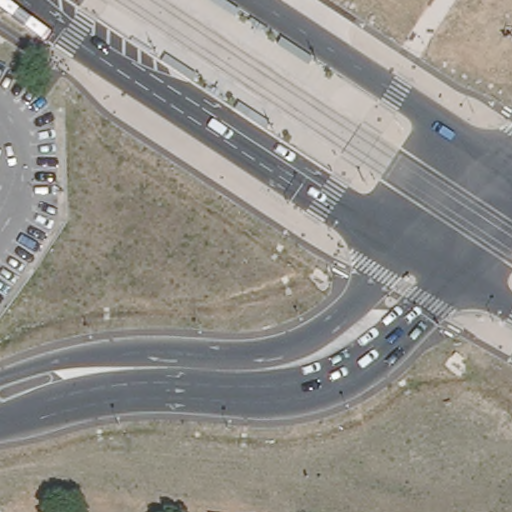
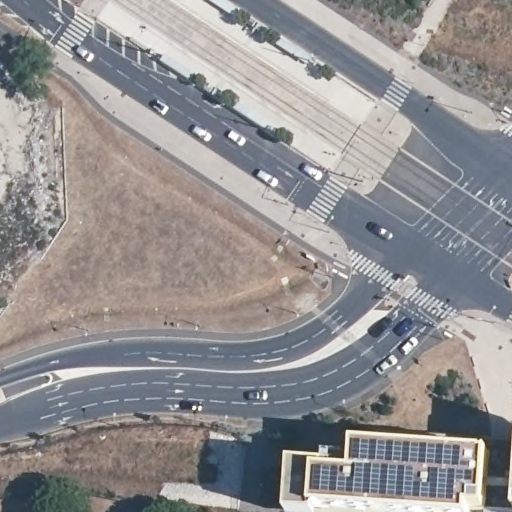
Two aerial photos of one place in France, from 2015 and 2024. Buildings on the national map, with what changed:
new [(490,440),(512,443),(512,511),(487,510),(490,455),(490,440)]
new [(356,467),(356,444),(490,455),(487,510),(487,512),(345,512),(316,510),(316,512),(290,512),(293,463),(356,467)]

